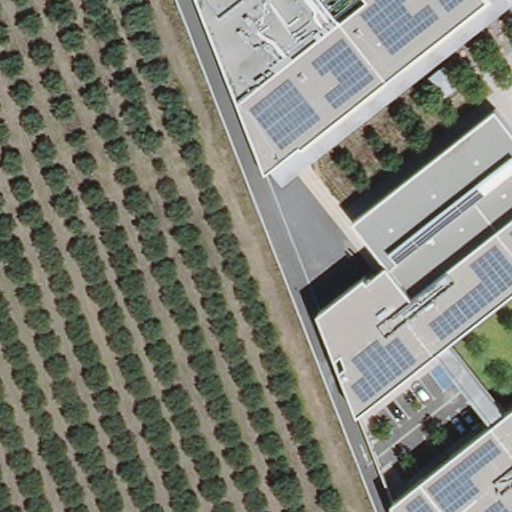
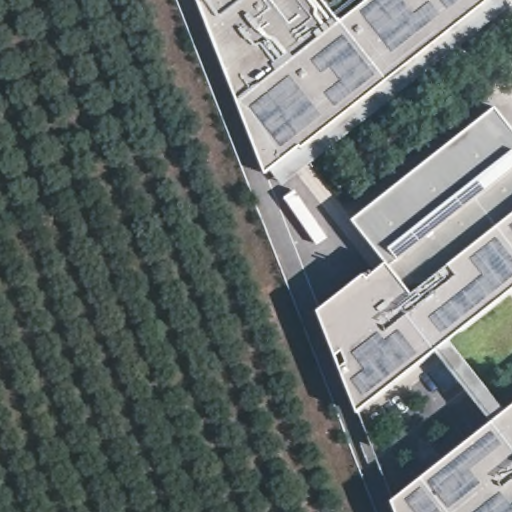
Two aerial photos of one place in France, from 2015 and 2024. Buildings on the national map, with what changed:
unchanged [(268,174),(199,0),(490,0),(268,174)]
unchanged [(320,312),(367,275),(370,277),(388,263),(354,219),(497,105),(512,125),(512,293),(360,413),(320,312)]
unchanged [(399,512),(395,501),(512,409),(512,512),(399,512)]

